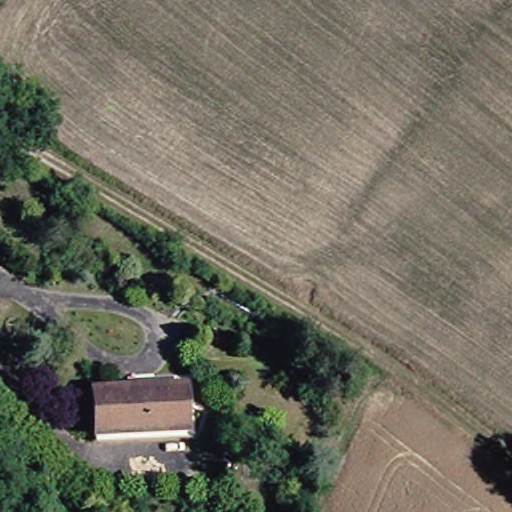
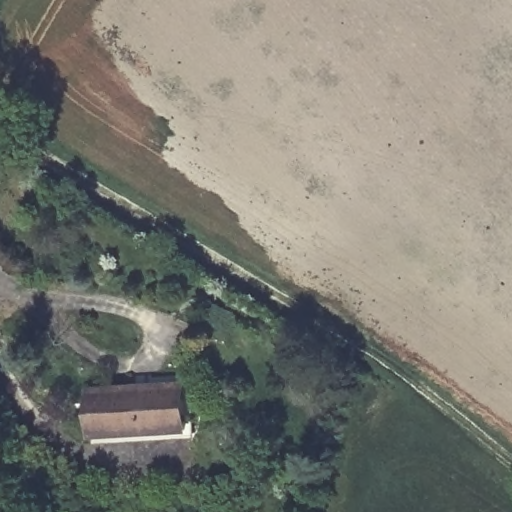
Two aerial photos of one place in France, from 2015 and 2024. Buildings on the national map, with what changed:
unchanged [(102,441),(99,394),(189,384),(195,432),(102,441)]

